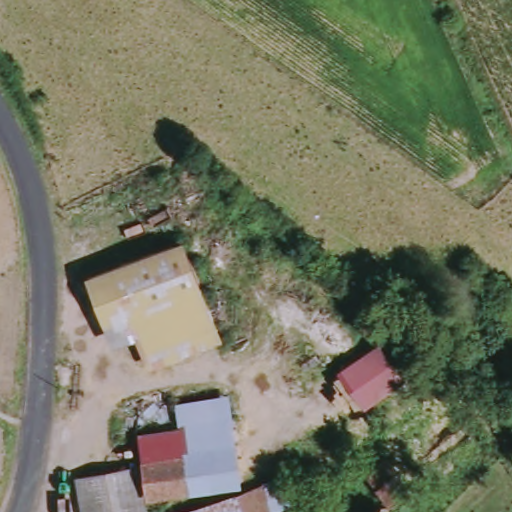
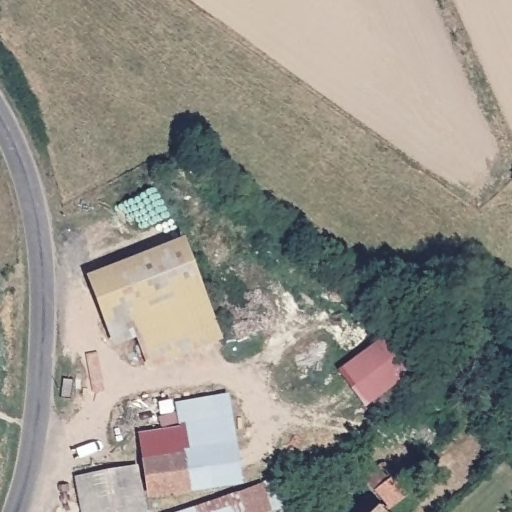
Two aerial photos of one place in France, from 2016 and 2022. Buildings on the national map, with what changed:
unchanged [(227,339),(156,368),(134,316),(111,324),(93,277),(188,239),(227,339)]
unchanged [(370,416),(342,375),(393,340),(421,381),(370,416)]
unchanged [(149,434),(237,420),(245,481),(158,494),(154,462),(149,434)]
unchanged [(393,504),(379,486),(368,473),(389,458),(398,470),(414,489),(393,504)]
unchanged [(142,473),(149,512),(86,512),(82,485),(142,473)]
unchanged [(257,507),(284,502),(284,512),(184,512),(251,486),(257,507)]

